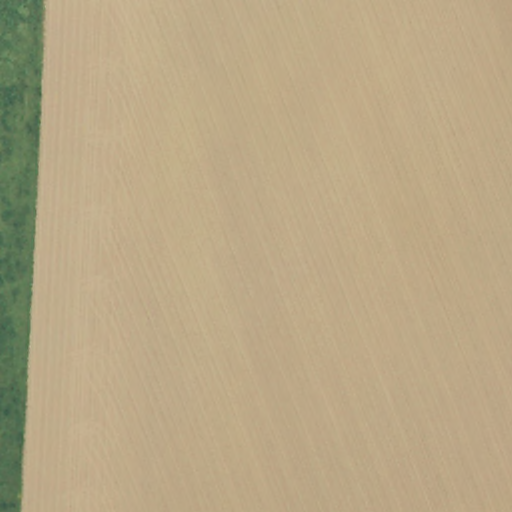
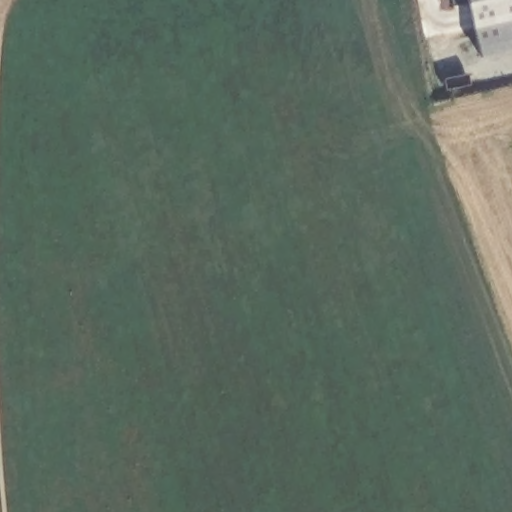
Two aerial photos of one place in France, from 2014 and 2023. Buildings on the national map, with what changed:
new [(481,57),(467,0),(512,0),(512,50),(481,57)]

